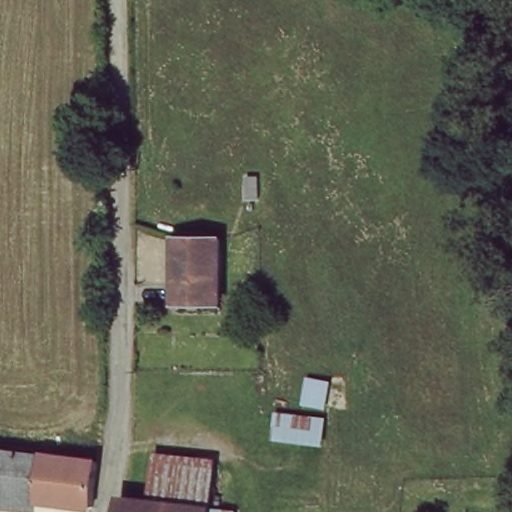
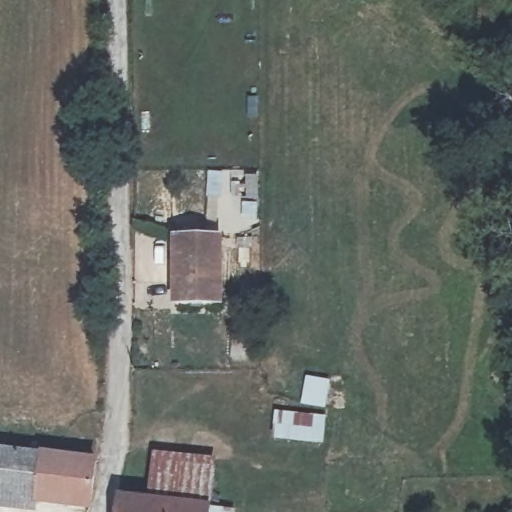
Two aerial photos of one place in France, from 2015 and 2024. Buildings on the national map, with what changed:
unchanged [(223,237),(222,309),(177,308),(178,236),(223,237)]
unchanged [(333,380),(330,408),(304,405),(307,377),(333,380)]
unchanged [(329,417),(326,447),(272,441),(275,411),(329,417)]
unchanged [(103,467),(100,511),(0,504),(0,458),(103,467)]
unchanged [(164,458),(219,461),(217,505),(161,501),(164,458)]
unchanged [(217,505),(216,512),(135,512),(137,499),(161,501),(217,505)]

